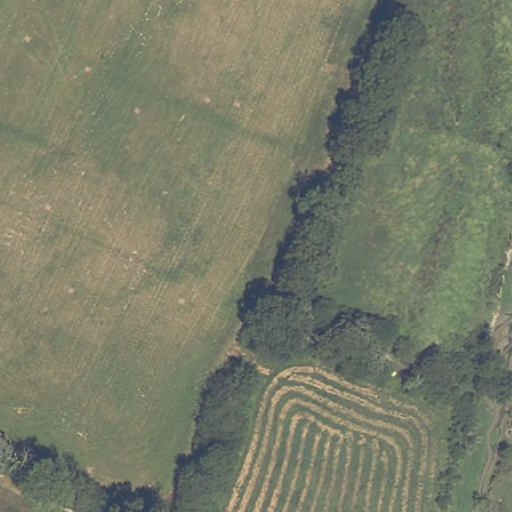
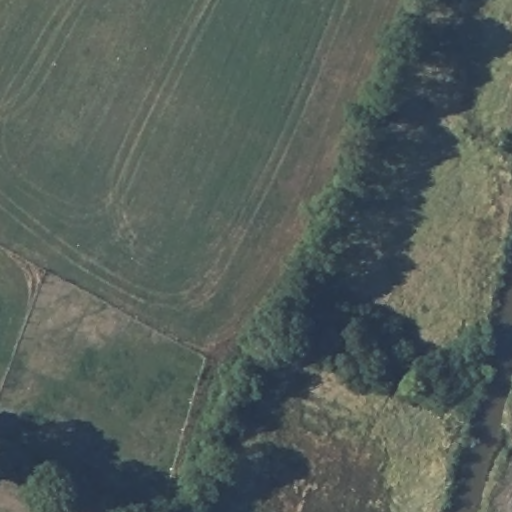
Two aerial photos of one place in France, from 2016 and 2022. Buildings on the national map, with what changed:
[]

